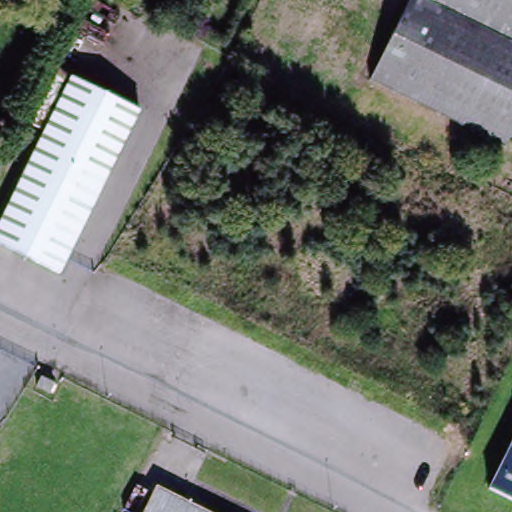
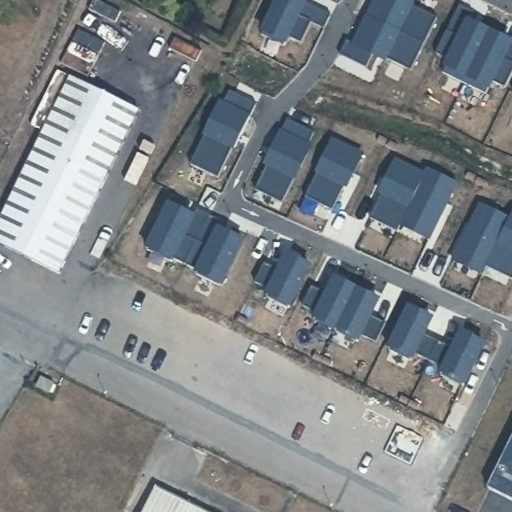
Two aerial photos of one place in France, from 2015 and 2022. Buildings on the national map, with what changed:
new [(279,0),(300,0),(332,15),(325,29),(312,23),(302,44),(289,38),(284,46),(262,35),(279,0)]
new [(377,0),(404,0),(413,4),(412,6),(438,19),(425,45),(369,17),(377,0)]
demolished [(413,0),(512,0),(512,144),(507,141),(503,148),(372,84),(413,0)]
new [(460,6),(474,13),(470,22),(490,33),(464,85),(443,74),(449,62),(436,55),(460,6)]
new [(347,41),(355,44),(369,17),(425,45),(411,72),(386,59),(385,61),(373,56),(366,69),(340,56),(347,41)]
new [(511,43),(512,40),(512,76),(506,89),(492,83),(486,95),(464,85),(490,33),(511,43)]
unchanged [(60,278),(0,249),(0,226),(71,82),(140,116),(60,278)]
new [(223,104),(230,91),(257,104),(235,148),(234,147),(218,178),(191,165),(221,103),(223,104)]
new [(288,119),(314,132),(307,146),(310,147),(282,203),(256,189),(268,164),(267,163),(288,119)]
new [(362,155),(347,185),(346,184),(333,210),(306,197),(334,141),(362,155)]
new [(424,175),(428,168),(456,182),(429,237),(401,224),(397,231),(371,218),(383,192),(382,191),(396,161),(424,175)]
demolished [(501,167),(512,173),(512,179),(509,186),(495,180),(501,167)]
new [(169,204),(193,216),(197,208),(211,215),(185,265),(173,259),(171,262),(147,250),(169,204)]
new [(512,213),(512,279),(487,267),(483,275),(454,261),(481,205),(509,219),(512,213)]
new [(221,287),(196,275),(198,271),(185,265),(211,215),(224,222),(220,229),(243,241),(221,287)]
new [(265,263),(280,270),(288,255),(310,266),(289,307),(267,296),(271,290),(256,282),(265,263)]
new [(328,294),(336,278),(379,300),(371,315),(386,323),(376,342),(361,334),(358,341),(315,320),(318,313),(303,305),(313,286),(328,294)]
new [(432,318),(424,334),(455,348),(462,333),(484,344),(464,386),(441,375),(445,368),(415,353),(411,360),(390,349),(410,308),(432,318)]
unchanged [(54,383),(50,392),(37,387),(42,377),(54,383)]
unchanged [(512,446),(512,505),(489,493),(512,446)]
unchanged [(209,512),(143,512),(156,485),(209,512)]

